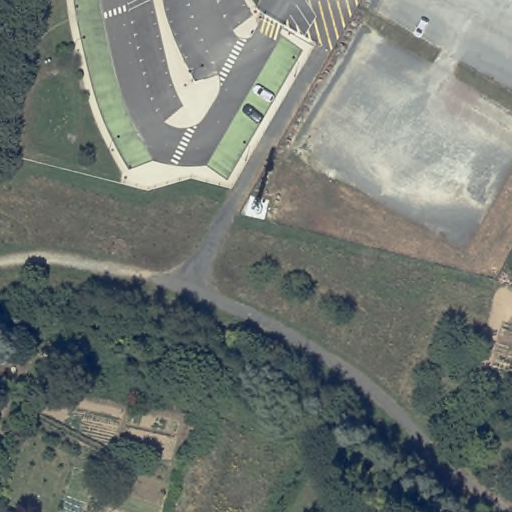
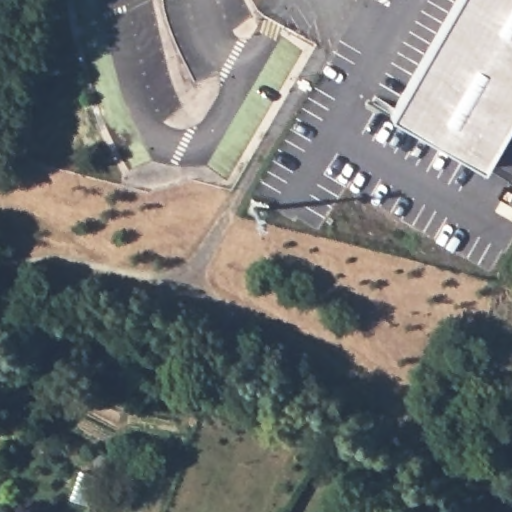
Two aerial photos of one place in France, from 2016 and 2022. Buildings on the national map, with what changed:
new [(512,0),(512,116),(482,169),(388,115),(454,0),(512,0)]

